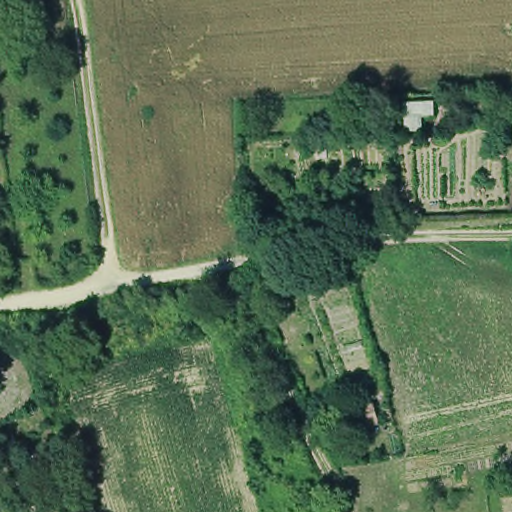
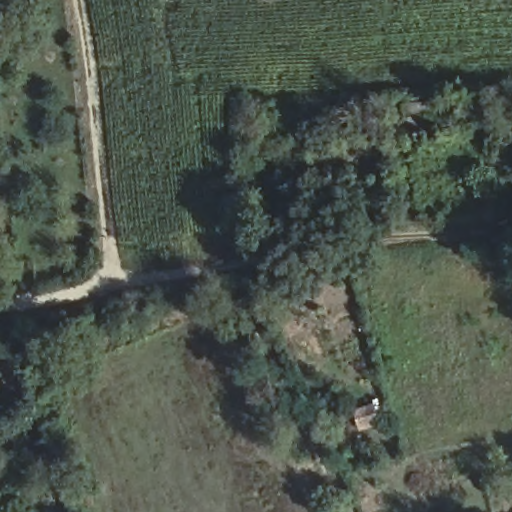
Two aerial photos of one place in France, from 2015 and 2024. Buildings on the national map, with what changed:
unchanged [(330,143),(328,181),(306,181),(307,142),(330,143)]

